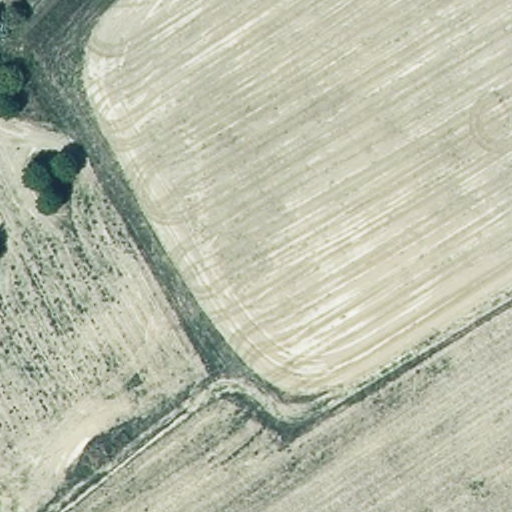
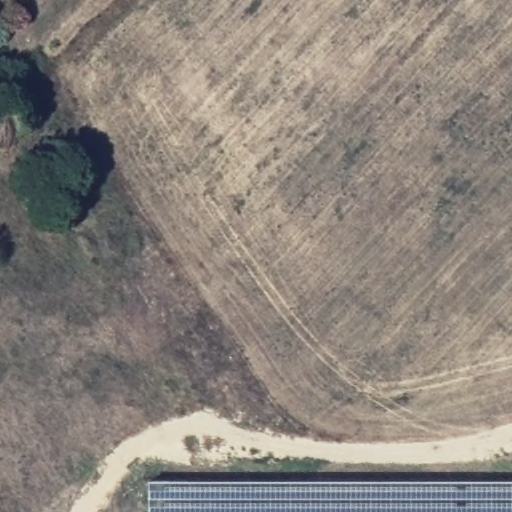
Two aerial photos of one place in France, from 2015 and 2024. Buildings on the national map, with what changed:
new [(512,480),(512,512),(145,512),(145,480),(512,480)]

